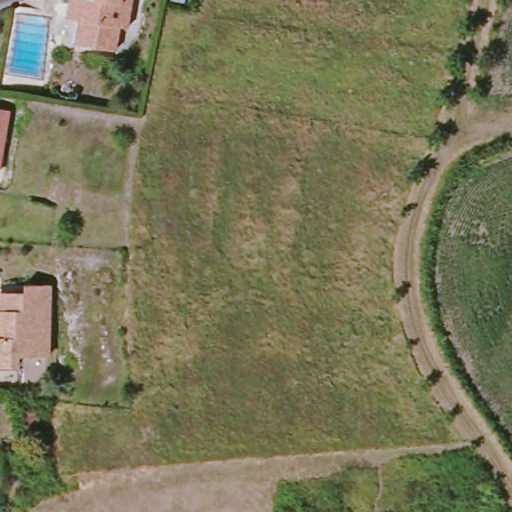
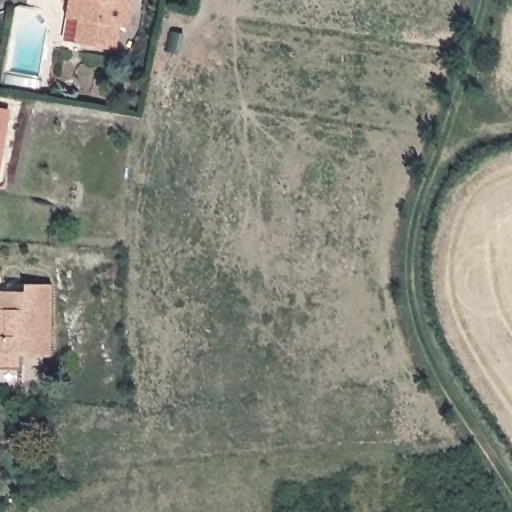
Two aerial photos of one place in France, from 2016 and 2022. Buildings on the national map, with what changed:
unchanged [(65,19),(69,0),(133,0),(129,29),(120,28),(115,53),(80,47),(73,46),(76,21),(75,21),(65,19)]
unchanged [(0,176),(0,111),(12,113),(2,176),(0,176)]
unchanged [(57,355),(25,356),(25,366),(0,366),(0,291),(12,291),(11,284),(30,284),(56,283),(57,355)]

